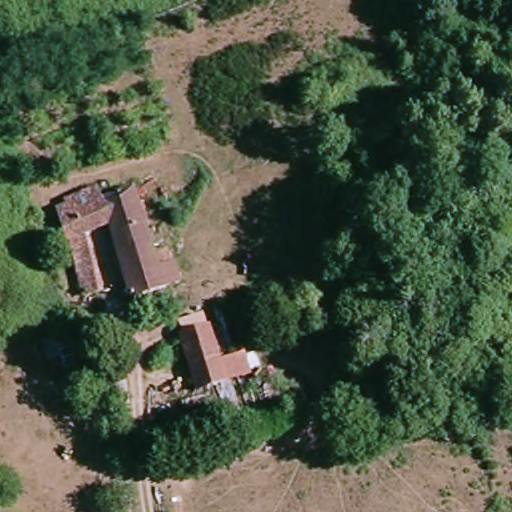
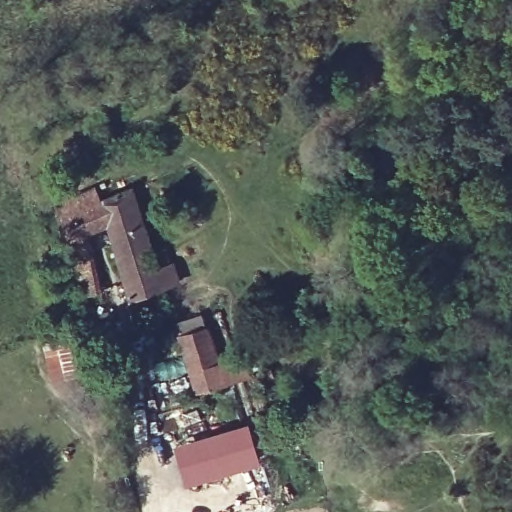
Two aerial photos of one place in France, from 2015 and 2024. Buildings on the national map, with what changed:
unchanged [(140,285),(116,227),(96,236),(79,243),(68,216),(77,213),(75,205),(109,190),(110,193),(112,197),(142,187),(154,212),(186,291),(148,307),(140,285)]
unchanged [(96,236),(113,292),(98,297),(79,243),(96,236)]
unchanged [(236,357),(240,375),(207,390),(189,334),(186,319),(204,312),(206,313),(211,327),(220,321),(231,358),(236,357)]
new [(175,445),(249,422),(262,462),(188,485),(175,445)]

